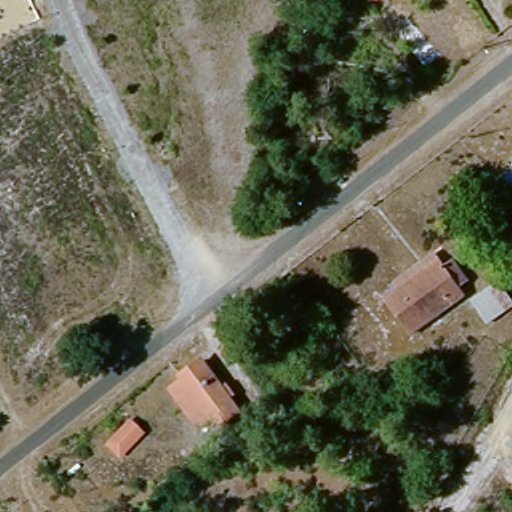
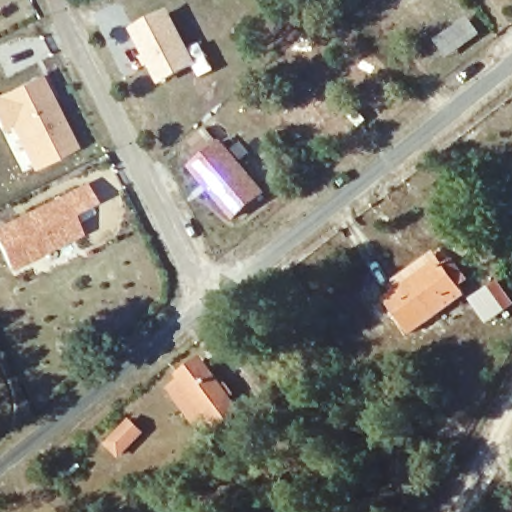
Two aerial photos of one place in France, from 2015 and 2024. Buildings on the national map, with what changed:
unchanged [(366,0),(381,0),(366,2),(366,0)]
new [(167,7),(189,49),(199,42),(214,70),(200,78),(192,67),(159,86),(130,29),(167,7)]
new [(470,17),(482,35),(446,59),(436,41),(470,17)]
new [(38,82),(71,149),(32,169),(11,126),(2,131),(0,127),(0,100),(38,82)]
new [(189,167),(221,140),(268,194),(234,221),(189,167)]
new [(9,271),(0,252),(0,225),(85,184),(94,203),(72,215),(82,235),(9,271)]
unchanged [(448,268),(456,261),(469,277),(462,285),(467,292),(416,335),(388,302),(401,290),(391,280),(428,248),(448,268)]
unchanged [(474,302),(510,265),(512,267),(512,304),(495,322),(474,302)]
unchanged [(239,407),(221,423),(214,416),(199,427),(165,383),(200,357),(239,407)]
unchanged [(137,436),(112,457),(101,443),(126,422),(137,436)]

